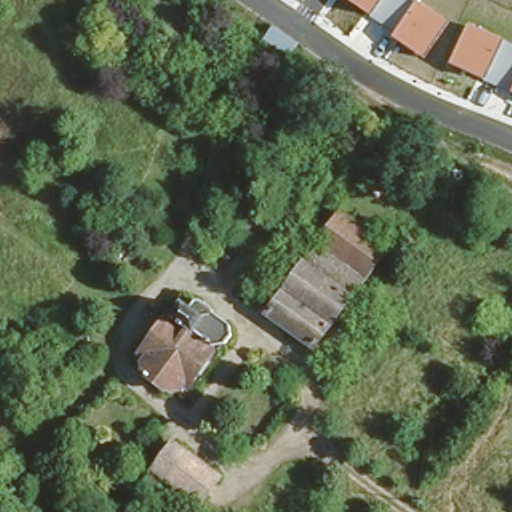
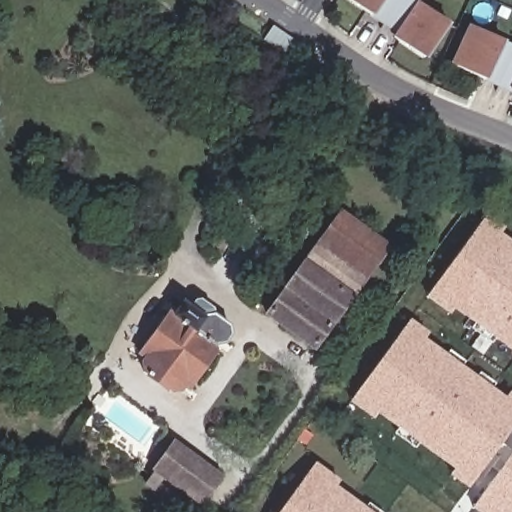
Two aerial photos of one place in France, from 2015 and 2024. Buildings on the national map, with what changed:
unchanged [(416,1),(448,27),(424,59),(391,35),(394,32),(347,0),(418,0),(416,1)]
unchanged [(450,67),(471,24),(512,44),(512,96),(450,67)]
unchanged [(270,312),(343,210),(387,242),(313,344),(270,312)]
new [(453,311),(450,316),(426,298),(486,216),(505,228),(501,234),(512,241),(512,354),(453,311)]
unchanged [(231,325),(232,328),(231,330),(230,333),(228,333),(221,329),(185,379),(190,384),(187,390),(185,392),(181,392),(177,390),(142,366),(141,362),(145,352),(140,344),(175,296),(183,298),(191,290),(195,290),(198,292),(212,302),(210,306),(230,320),(231,325)]
new [(450,475),(452,471),(377,415),(373,420),(349,402),(409,320),(427,333),(423,338),(505,397),(509,392),(512,394),(512,428),(468,489),(450,475)]
unchanged [(203,499),(159,466),(176,441),(220,474),(203,499)]
new [(474,512),(471,510),(512,453),(512,512),(474,512)]
new [(340,481),(336,486),(372,512),(280,512),(316,463),(340,481)]
unchanged [(186,512),(146,483),(159,466),(203,499),(193,512),(186,512)]

